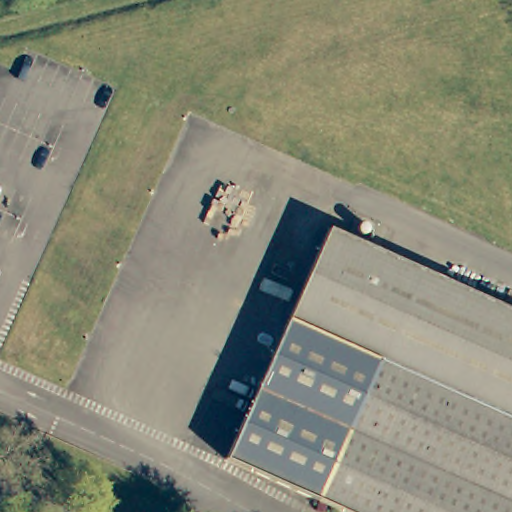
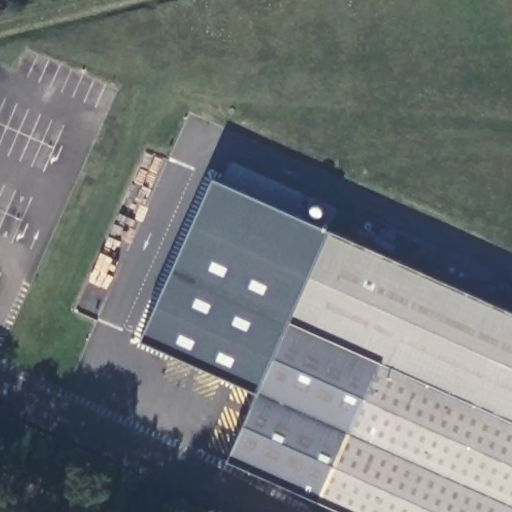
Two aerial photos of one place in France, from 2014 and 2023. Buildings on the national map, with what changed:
new [(284,322),(254,388),(140,340),(212,178),(325,229),(284,322)]
unchanged [(325,229),(512,310),(512,421),(378,362),(284,322),(325,229)]
unchanged [(223,460),(284,322),(378,362),(316,501),(223,460)]
unchanged [(378,362),(512,421),(512,512),(341,512),(316,501),(378,362)]

